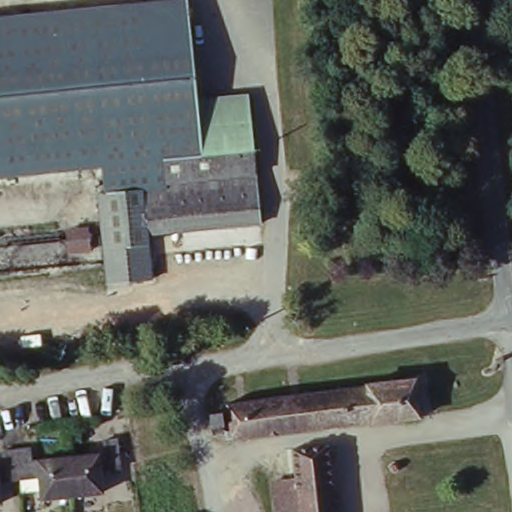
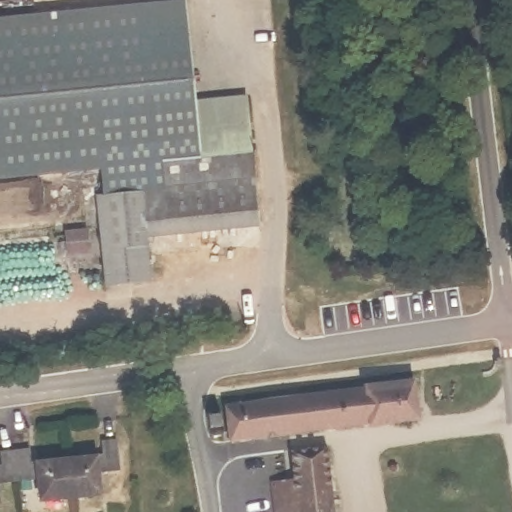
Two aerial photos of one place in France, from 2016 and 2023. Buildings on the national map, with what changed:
unchanged [(188,4),(194,68),(137,74),(130,11),(188,4)]
unchanged [(194,68),(197,105),(203,160),(104,170),(0,181),(0,25),(130,11),(137,74),(194,68)]
unchanged [(106,256),(100,197),(106,195),(104,170),(203,160),(197,105),(252,100),(264,230),(154,241),(157,286),(122,289),(110,290),(106,256)]
unchanged [(95,233),(99,254),(75,256),(73,235),(95,233)]
unchanged [(425,383),(430,421),(300,437),(229,446),(225,409),(425,383)]
unchanged [(218,417),(219,437),(208,438),(208,418),(218,417)]
unchanged [(5,455),(36,450),(37,464),(98,457),(97,443),(119,441),(121,475),(105,477),(106,493),(40,500),(38,483),(7,488),(6,506),(0,506),(0,469),(5,469),(5,455)]
unchanged [(290,480),(287,450),(325,444),(333,512),(294,512),(290,480)]
unchanged [(273,484),(290,480),(294,512),(276,512),(273,484)]

